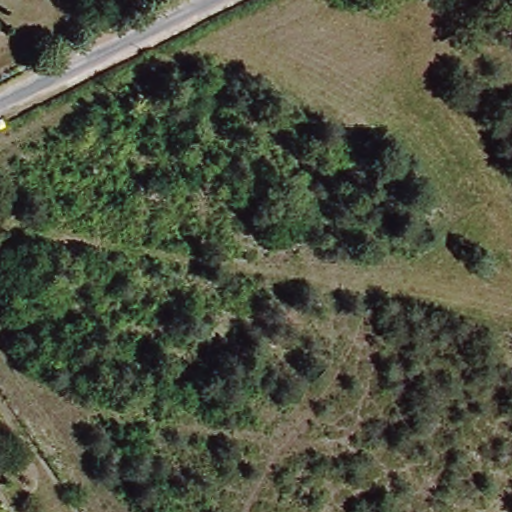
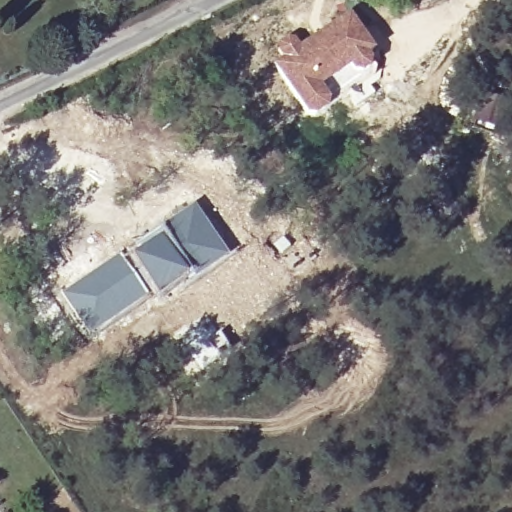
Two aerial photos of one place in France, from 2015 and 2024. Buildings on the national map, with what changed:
new [(278,59),(275,47),(291,36),(299,45),(349,12),(376,51),(374,52),(366,72),(359,77),(357,76),(356,78),(348,72),(334,80),(324,86),(329,95),(328,105),(323,112),(316,117),(308,116),(304,112),(296,102),(271,62),(278,59)]
new [(193,204),(228,256),(193,277),(160,226),(193,204)]
new [(160,226),(193,277),(151,300),(121,251),(160,226)]
new [(121,251),(151,300),(89,337),(59,291),(121,251)]

